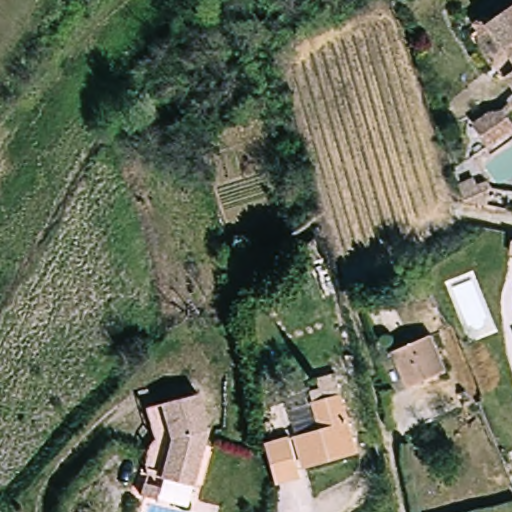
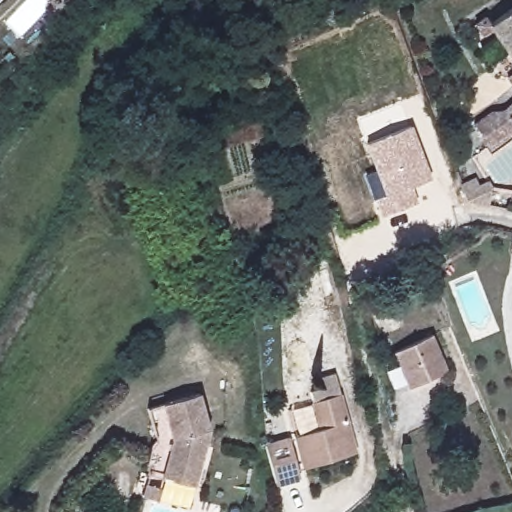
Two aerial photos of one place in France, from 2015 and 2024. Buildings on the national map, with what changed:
unchanged [(491,27),(483,34),(475,23),(485,16),(490,23),(512,7),(512,57),(491,27)]
unchanged [(512,71),(512,85),(506,76),(512,71)]
unchanged [(492,112),(506,111),(512,120),(512,133),(493,147),(475,125),(492,112)]
new [(433,179),(413,186),(419,203),(381,218),(364,173),(375,170),(366,144),(412,125),(433,179)]
unchanged [(464,189),(461,182),(469,177),(473,183),(482,178),(487,184),(486,186),(484,203),(468,199),(467,198),(464,189)]
unchanged [(390,352),(432,334),(447,373),(406,389),(390,352)]
unchanged [(303,466),(294,434),(321,428),(314,401),(311,392),(321,389),(319,379),(338,374),(343,393),(358,453),(303,466)]
unchanged [(168,443),(161,405),(199,395),(208,435),(193,486),(157,476),(168,443)]
unchanged [(291,435),(299,474),(274,480),(266,441),(291,435)]

